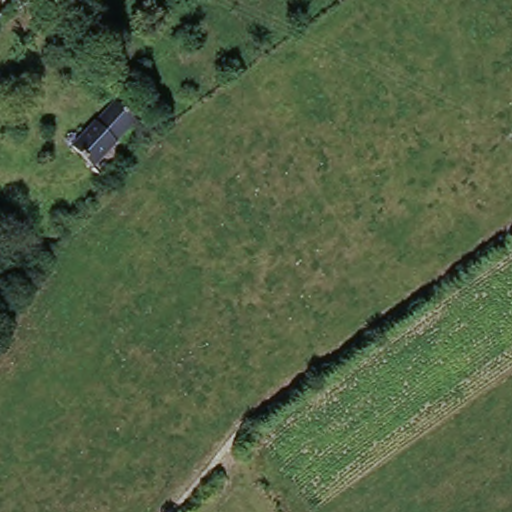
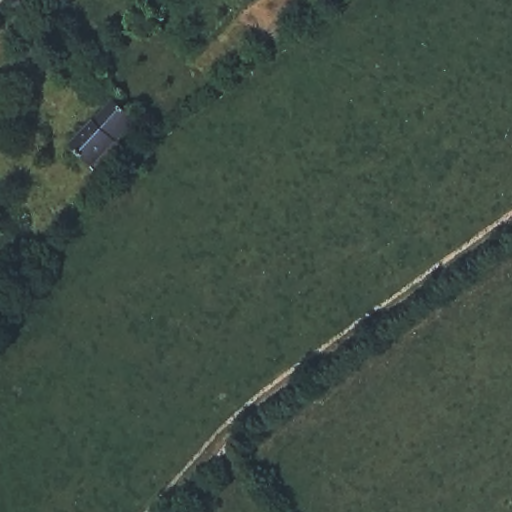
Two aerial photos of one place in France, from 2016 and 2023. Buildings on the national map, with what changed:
unchanged [(121,114),(140,131),(100,174),(81,156),(121,114)]

